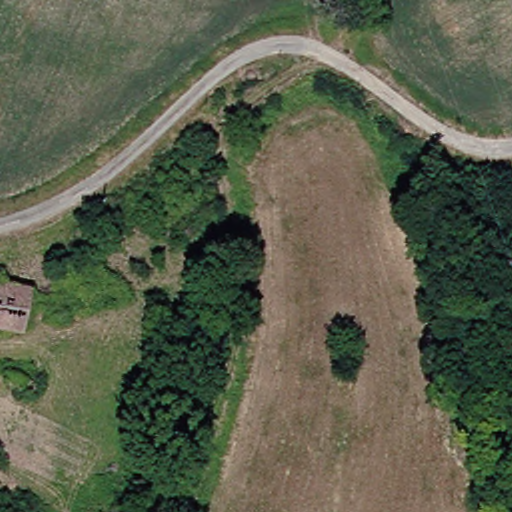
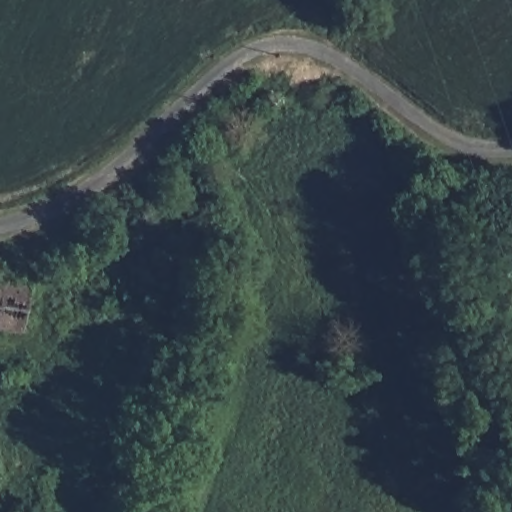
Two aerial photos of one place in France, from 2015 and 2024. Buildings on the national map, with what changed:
unchanged [(38,292),(24,333),(0,327),(0,282),(38,292)]
unchanged [(22,392),(0,386),(0,370),(26,377),(22,392)]

